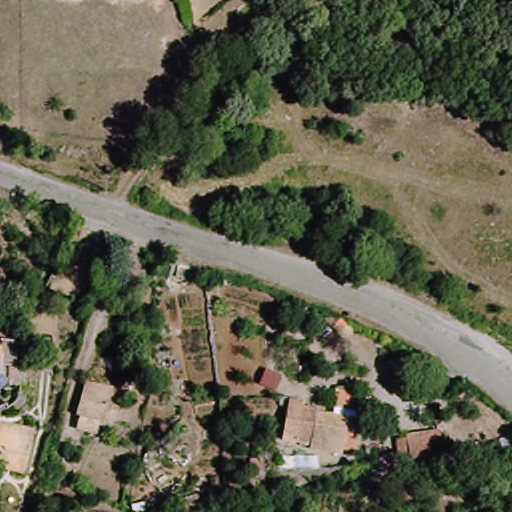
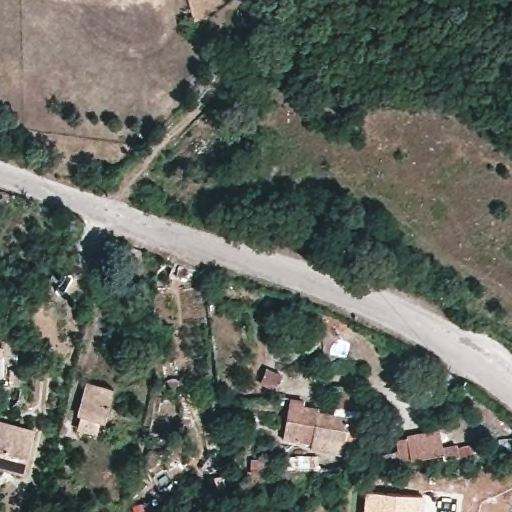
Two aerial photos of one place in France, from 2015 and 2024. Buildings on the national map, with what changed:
unchanged [(13,381),(0,381),(0,343),(22,343),(13,381)]
unchanged [(113,386),(103,420),(75,411),(85,378),(113,386)]
unchanged [(311,452),(312,447),(296,444),(297,434),(281,429),(289,397),(302,401),(302,410),(318,414),(317,420),(359,431),(357,447),(355,456),(337,455),(311,452)]
unchanged [(0,423),(35,432),(26,459),(22,473),(0,467),(0,423)]
unchanged [(433,453),(395,461),(390,440),(430,433),(433,453)]
new [(425,495),(423,512),(361,512),(364,489),(425,495)]

